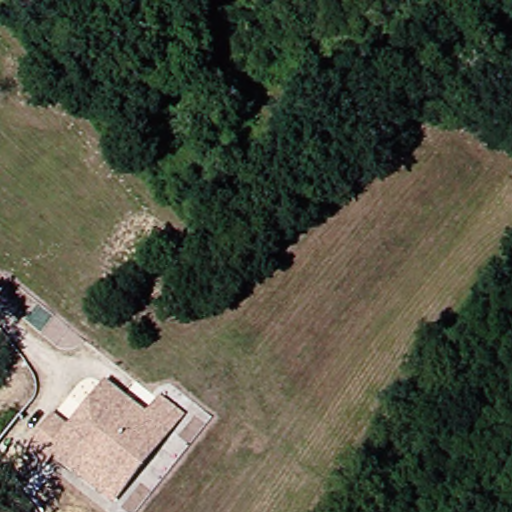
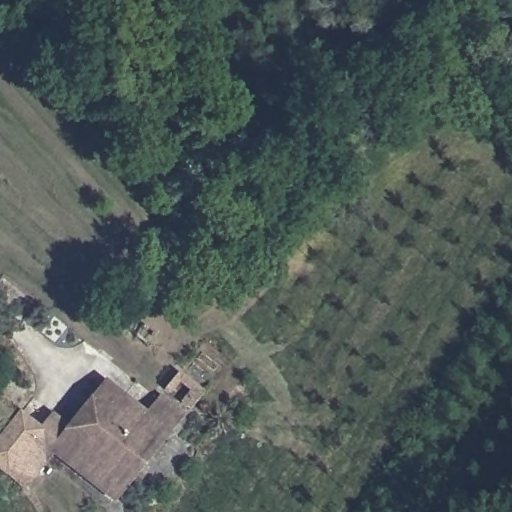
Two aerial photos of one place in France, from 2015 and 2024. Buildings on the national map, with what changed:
unchanged [(30,438),(53,407),(71,420),(105,376),(147,408),(161,389),(189,416),(111,506),(30,438)]
new [(39,427),(30,438),(52,457),(22,492),(0,473),(0,436),(20,411),(39,427)]

